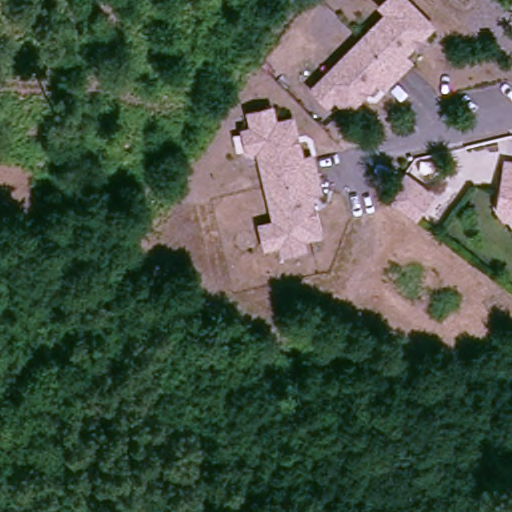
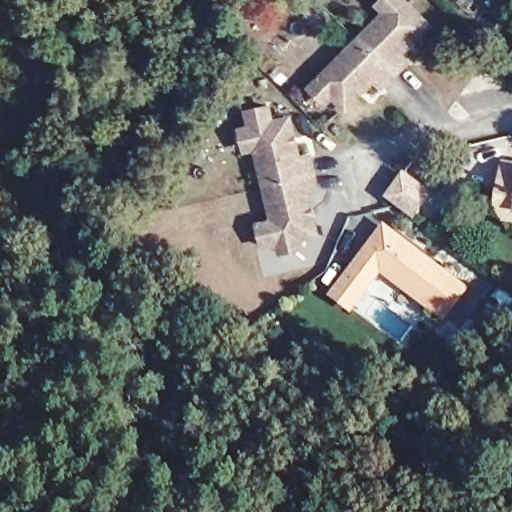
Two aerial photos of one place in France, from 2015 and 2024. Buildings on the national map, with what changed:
unchanged [(301,82),(309,75),(351,32),(376,7),(369,0),(401,0),(420,19),(391,49),(398,56),(387,67),(373,81),(366,74),(337,103),(324,90),(317,98),(301,82)]
unchanged [(255,223),(270,220),(261,184),(253,147),(243,150),(238,130),(248,128),(244,111),(265,106),(269,121),(286,117),(296,157),(305,155),(309,170),(309,172),(313,183),(314,189),(309,190),(304,191),(305,197),(314,232),(294,236),(296,246),(279,250),(277,251),(274,241),(260,245),(255,223)]
unchanged [(511,207),(504,197),(512,166),(512,208),(511,207)]
unchanged [(432,199),(414,222),(396,209),(387,202),(404,178),(432,199)]
new [(472,288),(445,321),(382,275),(376,282),(353,265),(386,223),(472,288)]

